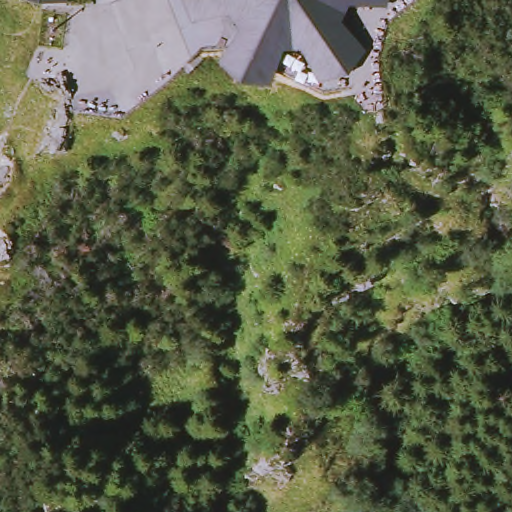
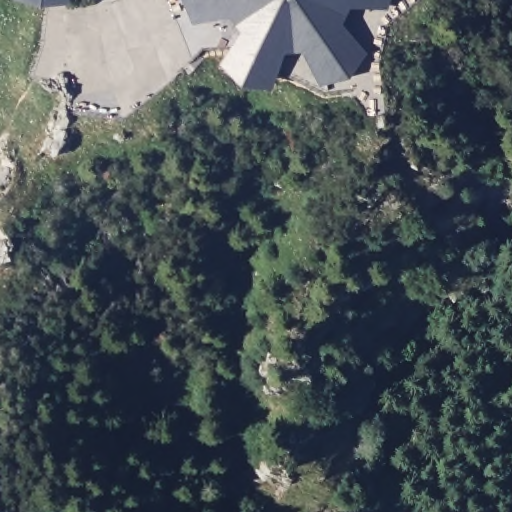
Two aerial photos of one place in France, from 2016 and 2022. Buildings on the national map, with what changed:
unchanged [(37,5),(21,0),(67,0),(67,4),(37,5)]
unchanged [(349,6),(341,22),(367,50),(348,76),(318,85),(300,51),(282,53),(272,86),(238,85),(220,65),(238,32),(230,17),(191,24),(180,0),(388,0),(387,7),(349,6)]

